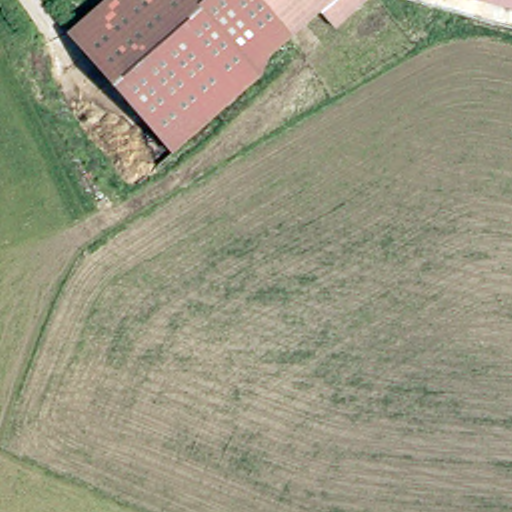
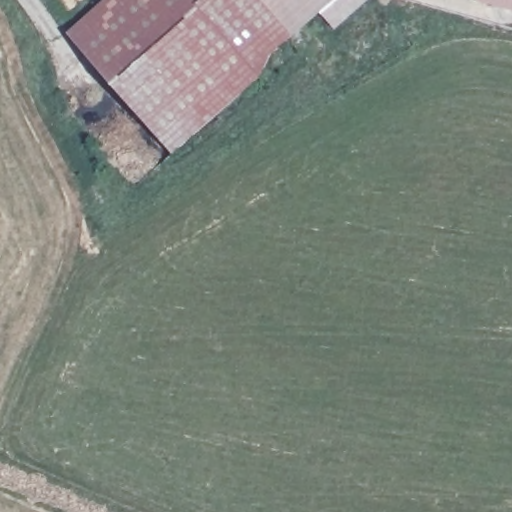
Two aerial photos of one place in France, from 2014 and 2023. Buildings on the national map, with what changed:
unchanged [(72,35),(112,0),(370,0),(337,28),(323,12),(274,55),(262,79),(177,154),(72,35)]
unchanged [(512,14),(482,6),(484,0),(512,0),(512,14)]

